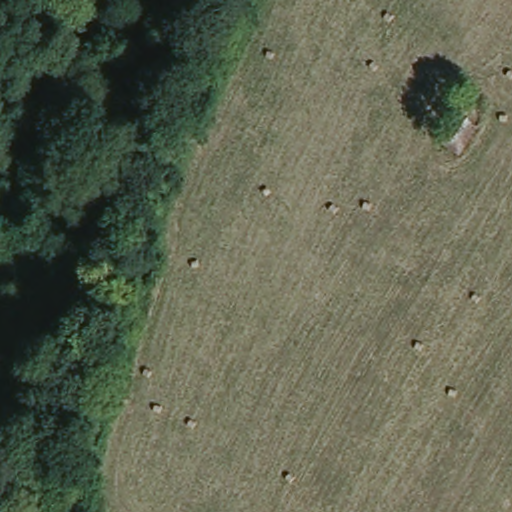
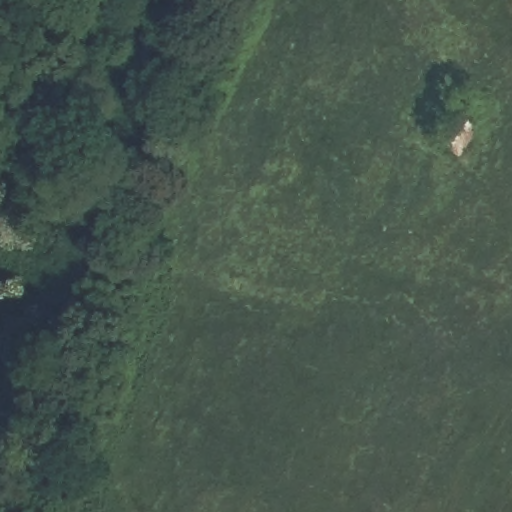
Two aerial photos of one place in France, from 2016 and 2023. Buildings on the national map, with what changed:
unchanged [(452,118),(446,112),(452,97),(481,109),(463,153),(442,144),(452,118)]

